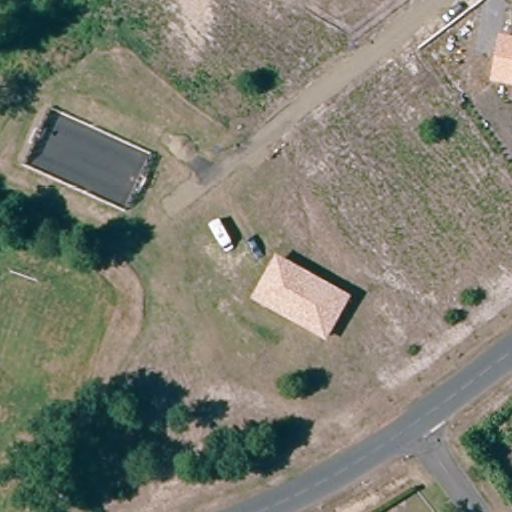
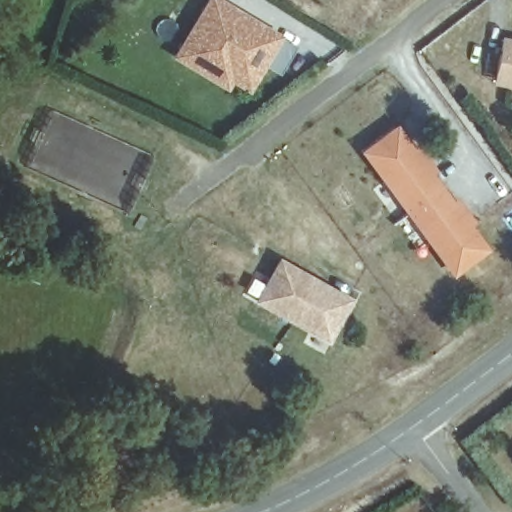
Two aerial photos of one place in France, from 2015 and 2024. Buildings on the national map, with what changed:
new [(265,62),(256,76),(188,37),(209,0),(224,0),(282,32),(280,37),(296,46),(281,72),(265,62)]
unchanged [(512,39),(512,87),(491,84),(499,36),(512,39)]
new [(188,37),(256,76),(252,84),(234,74),(230,82),(179,53),(188,37)]
new [(359,151),(397,122),(416,147),(419,144),(439,169),(434,172),(453,198),(457,195),(476,221),(472,224),(491,251),(452,278),(359,151)]
unchanged [(252,301),(277,257),(353,297),(329,343),(252,301)]

